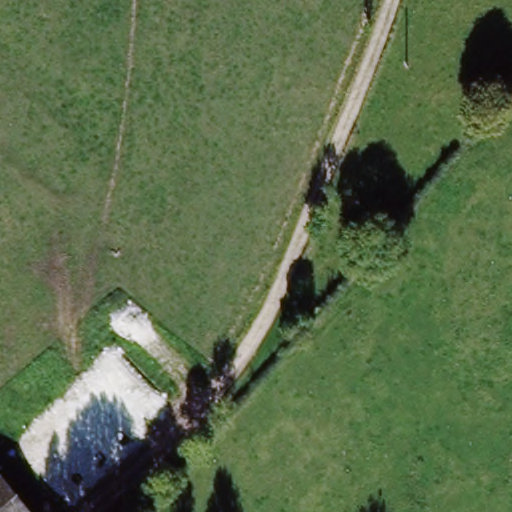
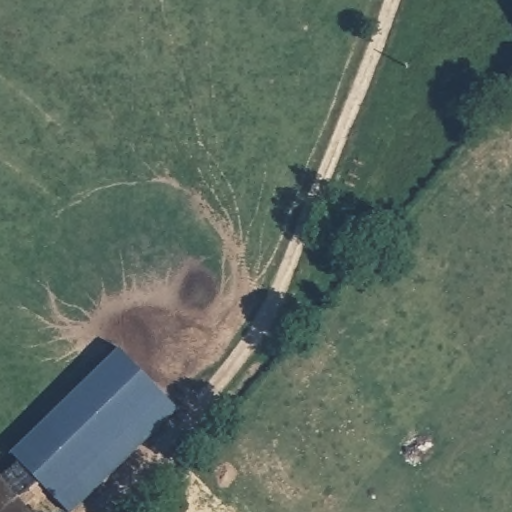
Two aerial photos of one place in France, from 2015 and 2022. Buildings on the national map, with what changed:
new [(180,410),(79,512),(70,512),(15,457),(121,351),(180,410)]
unchanged [(28,512),(0,512),(0,476),(28,512)]

